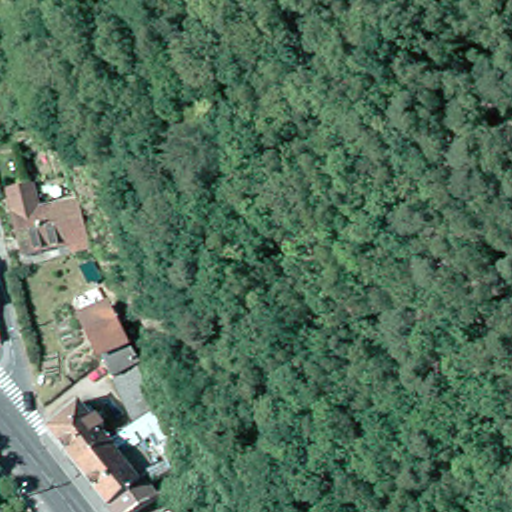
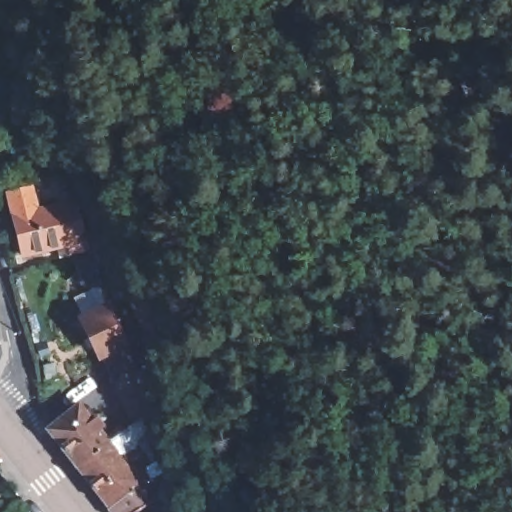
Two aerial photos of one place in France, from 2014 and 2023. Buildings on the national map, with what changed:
unchanged [(75,213),(80,213),(88,243),(70,247),(25,260),(15,220),(16,220),(11,201),(33,195),(39,214),(72,206),(75,213)]
unchanged [(107,297),(112,309),(138,357),(114,369),(105,351),(85,310),(105,298),(107,297)]
unchanged [(82,399),(90,410),(97,406),(110,422),(104,427),(112,438),(78,464),(49,425),(82,399)]
unchanged [(151,475),(160,468),(143,444),(157,435),(167,448),(173,458),(180,471),(124,512),(115,512),(107,502),(138,479),(149,472),(151,475)]
unchanged [(112,438),(120,449),(117,452),(138,479),(107,502),(78,464),(112,438)]

